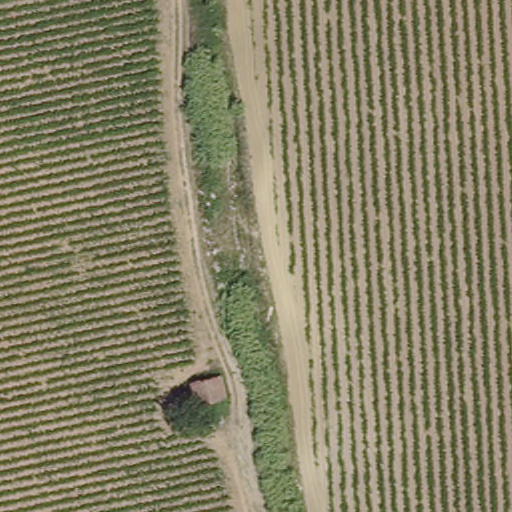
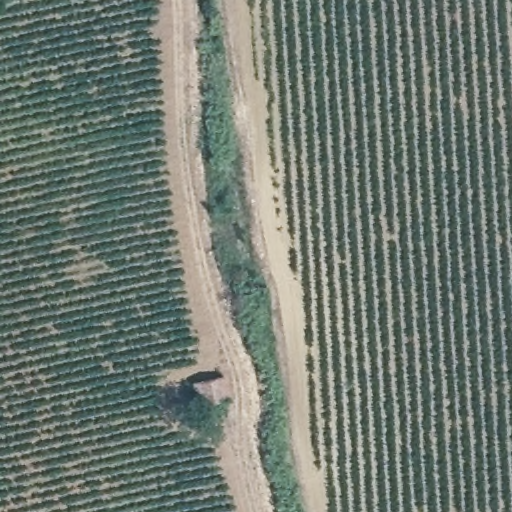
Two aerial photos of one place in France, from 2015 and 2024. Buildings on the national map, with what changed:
unchanged [(188,383),(219,375),(224,406),(193,408),(188,383)]

